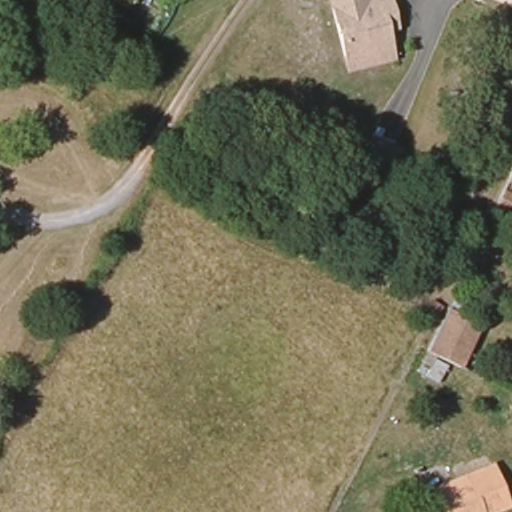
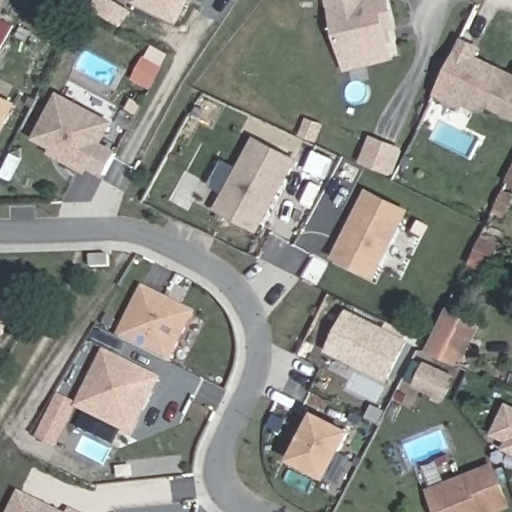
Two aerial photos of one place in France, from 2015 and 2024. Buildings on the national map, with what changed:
new [(177,21),(136,1),(136,0),(188,0),(187,1),(177,21)]
unchanged [(347,69),(344,58),(331,0),(375,0),(376,4),(383,3),(390,26),(382,27),(387,48),(389,60),(347,69)]
new [(490,108),(478,111),(467,106),(465,110),(435,95),(462,38),(483,48),(478,56),(512,73),(512,118),(490,108)]
new [(106,175),(88,166),(86,171),(60,157),(52,153),(55,148),(36,139),(59,96),(111,123),(99,144),(117,154),(106,175)]
new [(0,99),(12,105),(0,127),(0,99)]
new [(255,140),(294,161),(257,230),(219,209),(255,140)]
unchanged [(366,163),(375,142),(400,155),(391,175),(366,163)]
unchanged [(510,188),(512,184),(512,189),(510,188)]
new [(373,276),(336,257),(368,192),(406,211),(373,276)]
new [(481,236),(499,243),(493,258),(483,254),(477,269),(467,264),(473,250),(481,236)]
new [(170,362),(121,338),(145,290),(193,314),(170,362)]
new [(0,337),(0,303),(14,311),(0,337)]
unchanged [(481,328),(460,372),(446,364),(437,382),(429,379),(437,360),(427,356),(447,311),(481,328)]
new [(388,378),(331,350),(348,313),(406,341),(388,378)]
new [(106,353),(159,380),(137,424),(134,422),(129,431),(80,407),(106,353)]
new [(492,434),(506,402),(512,405),(512,454),(510,454),(492,434)]
new [(327,477),(293,459),(300,446),(303,447),(311,431),(308,429),(316,415),(349,433),(327,477)]
unchanged [(492,468),(505,504),(481,512),(436,512),(428,491),(492,468)]

